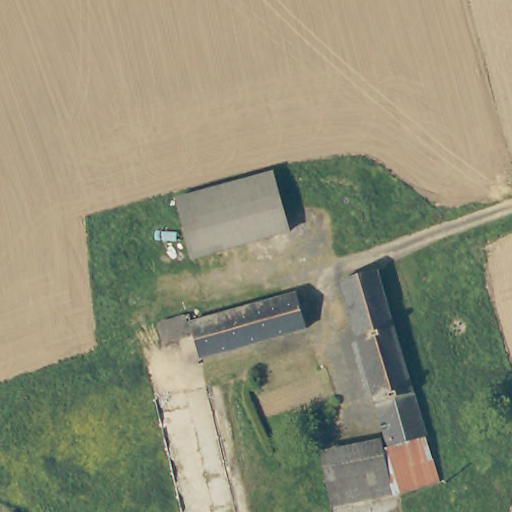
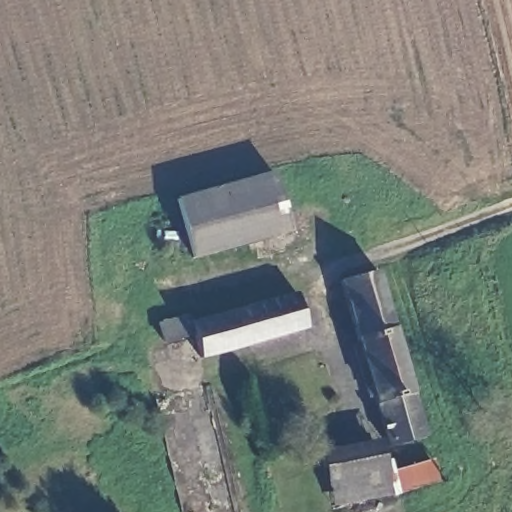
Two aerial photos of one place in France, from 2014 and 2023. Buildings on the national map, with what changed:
unchanged [(194,259),(177,199),(274,172),(274,176),(290,231),(194,259)]
unchanged [(392,440),(346,281),(357,278),(382,270),(431,435),(394,447),(392,440)]
unchanged [(306,322),(199,352),(194,329),(163,337),(159,318),(189,309),(190,317),(296,287),(306,322)]
unchanged [(394,447),(431,435),(443,481),(396,496),(386,441),(392,440),(394,447)]
unchanged [(386,441),(396,496),(338,506),(327,451),(386,441)]

